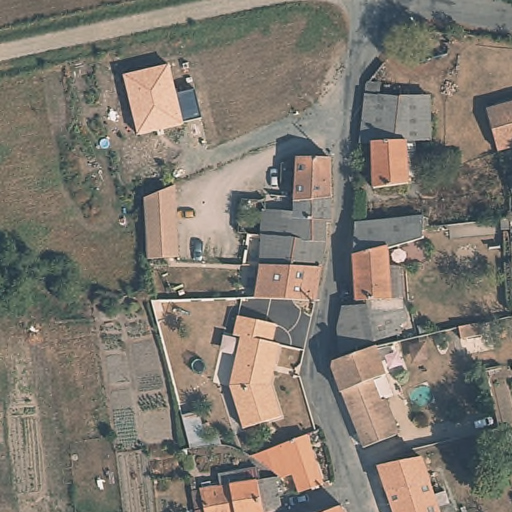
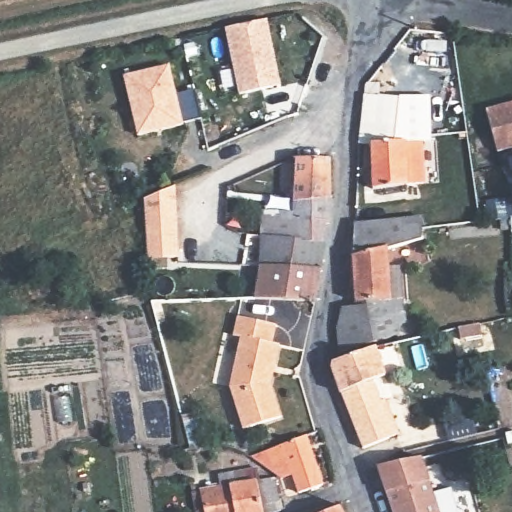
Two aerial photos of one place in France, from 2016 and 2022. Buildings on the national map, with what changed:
new [(268,18),(282,84),(241,93),(227,27),(268,18)]
unchanged [(183,123),(184,126),(136,136),(123,76),(171,65),(178,95),(196,91),(202,118),(183,123)]
unchanged [(384,87),(384,97),(430,98),(431,143),(417,144),(406,144),(410,190),(378,192),(374,144),(361,143),(366,87),(384,87)]
unchanged [(491,101),(512,96),(512,140),(499,143),(491,101)]
unchanged [(330,223),(301,224),(301,220),(295,220),(295,190),(295,158),(333,158),(333,184),(333,223),(330,223)]
unchanged [(147,243),(145,199),(177,185),(178,198),(178,206),(179,242),(180,261),(147,263),(147,243)]
unchanged [(286,211),(286,220),(291,220),(295,220),(301,220),(301,224),(330,223),(317,303),(314,303),(260,294),(260,293),(262,261),(266,211),(286,211)]
unchanged [(379,301),(359,304),(354,251),(358,221),(390,219),(423,216),(425,242),(392,246),(394,262),(405,262),(409,300),(379,306),(379,301)]
unchanged [(415,326),(389,334),(347,347),(344,326),(345,306),(359,304),(379,301),(379,306),(409,300),(416,300),(415,326)]
unchanged [(455,353),(451,326),(469,323),(473,350),(455,353)]
unchanged [(265,355),(272,357),(267,378),(263,377),(261,384),(264,388),(262,398),(271,429),(233,440),(221,397),(233,348),(227,346),(232,326),(270,337),(268,343),(265,355)]
unchanged [(369,441),(348,385),(345,386),(336,358),(349,353),(380,341),(388,371),(380,374),(382,380),(388,396),(394,394),(406,423),(408,428),(388,435),(369,441)]
unchanged [(199,413),(204,437),(219,436),(222,447),(190,453),(188,449),(181,418),(199,413)]
unchanged [(292,474),(287,470),(260,451),(311,431),(321,467),(325,483),(325,486),(302,492),(299,478),(298,473),(292,474)]
unchanged [(420,456),(432,494),(446,490),(453,512),(392,512),(377,465),(420,456)]
unchanged [(278,471),(282,496),(284,505),(230,512),(202,512),(197,479),(278,471)]

